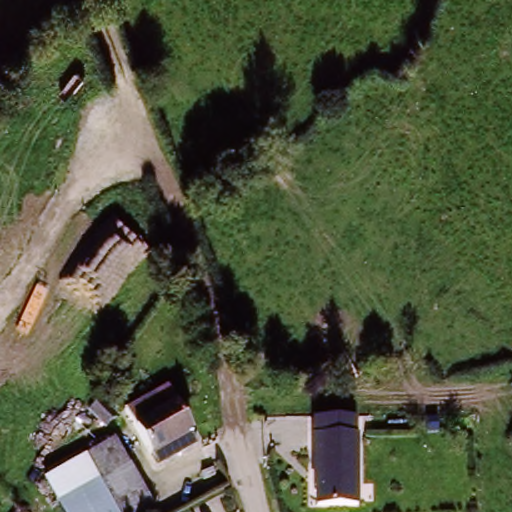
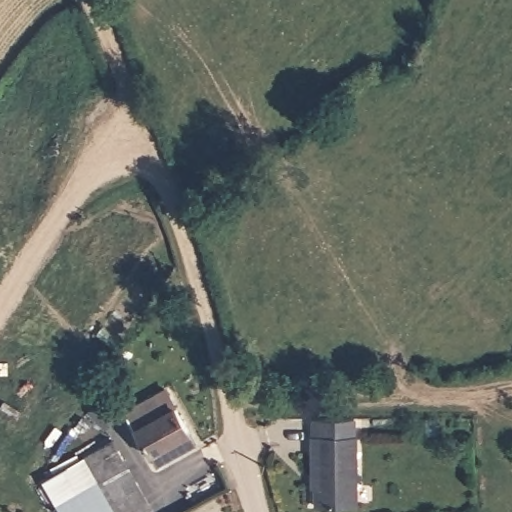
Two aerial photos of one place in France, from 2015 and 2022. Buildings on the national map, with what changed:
unchanged [(194,445),(153,467),(122,410),(142,399),(152,418),(174,407),(194,445)]
unchanged [(315,440),(354,433),(360,504),(323,509),(322,477),(317,479),(315,440)]
unchanged [(38,481),(113,437),(155,507),(146,512),(59,512),(38,481)]

